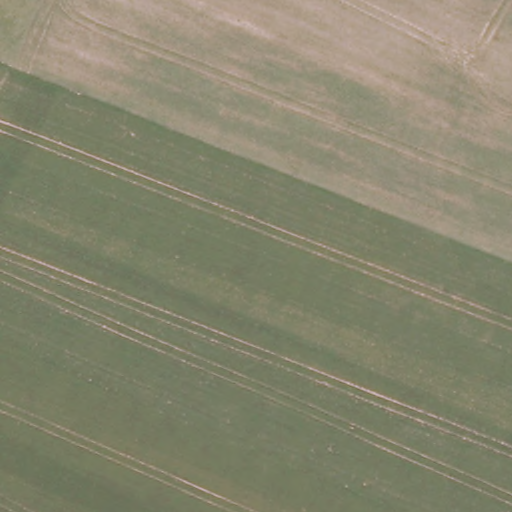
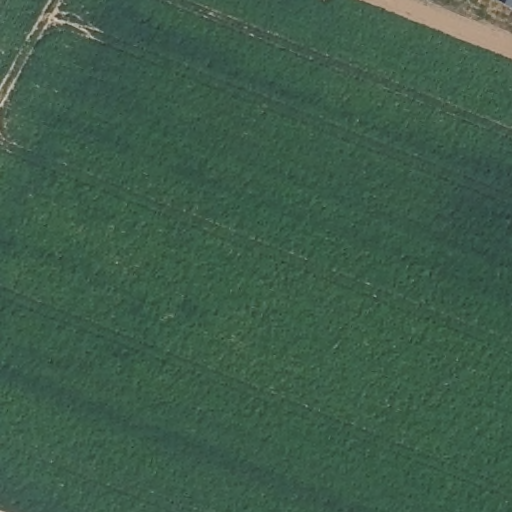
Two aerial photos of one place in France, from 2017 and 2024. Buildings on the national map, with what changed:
new [(498,0),(512,0),(512,8),(498,0)]

